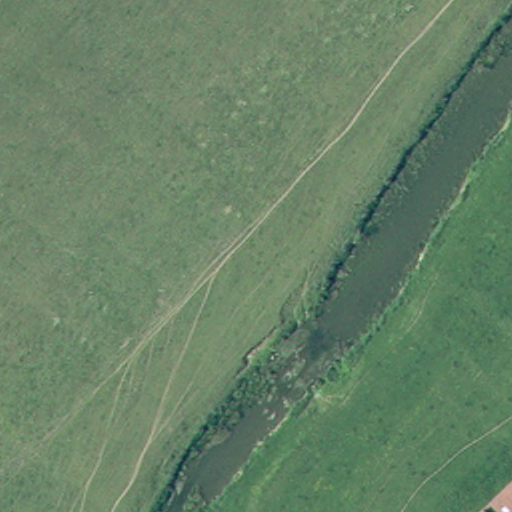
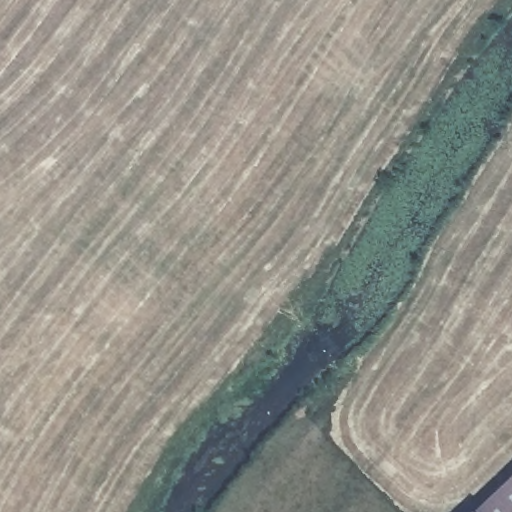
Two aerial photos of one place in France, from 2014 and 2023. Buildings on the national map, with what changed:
unchanged [(479,512),(512,478),(512,512),(479,512)]

